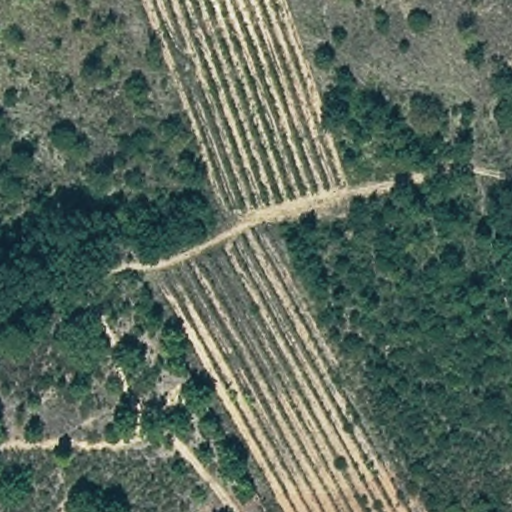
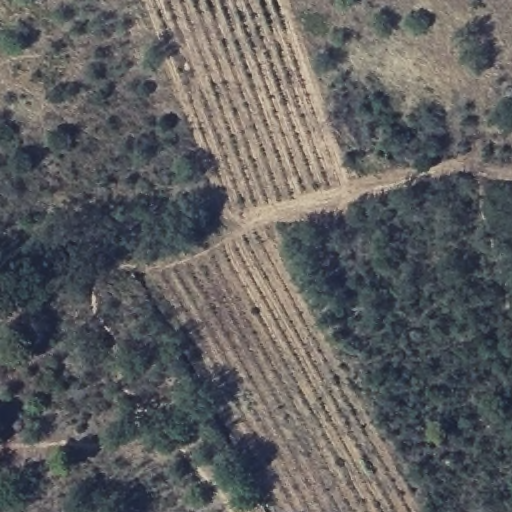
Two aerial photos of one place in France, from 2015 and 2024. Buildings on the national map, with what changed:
[]

